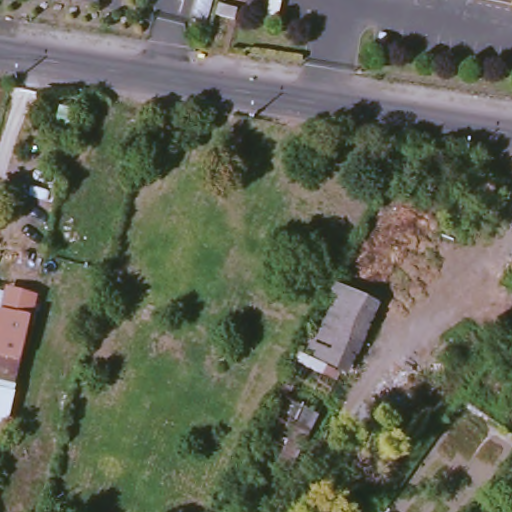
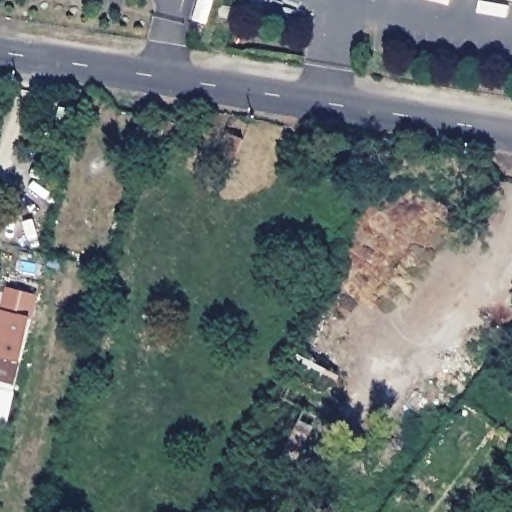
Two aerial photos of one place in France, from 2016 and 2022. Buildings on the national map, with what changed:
unchanged [(512,0),(512,1),(507,0),(512,0)]
unchanged [(221,12),(223,2),(241,7),(239,17),(221,12)]
unchanged [(73,135),(52,133),(54,103),(76,106),(73,135)]
unchanged [(243,136),(235,166),(216,162),(224,132),(243,136)]
demolished [(348,372),(302,350),(335,282),(382,304),(348,372)]
unchanged [(9,421),(0,418),(0,334),(7,309),(34,316),(9,421)]

